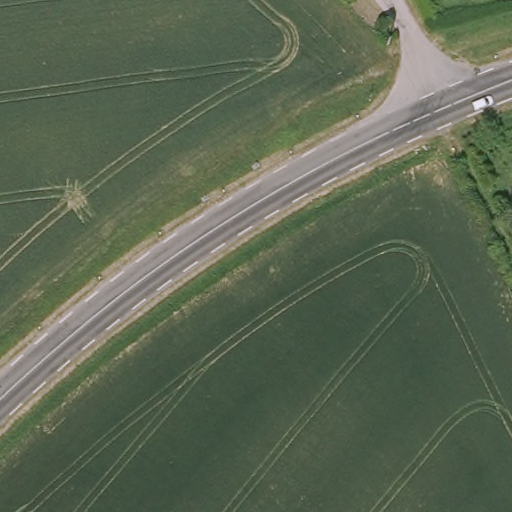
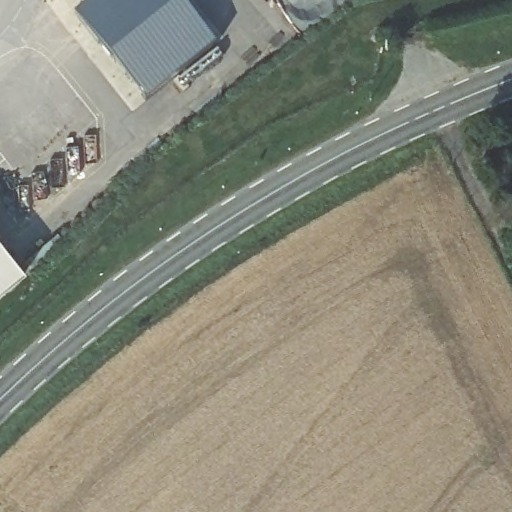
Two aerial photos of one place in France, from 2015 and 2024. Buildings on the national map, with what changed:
new [(75,14),(93,0),(181,0),(216,44),(146,101),(75,14)]
new [(0,299),(0,261),(18,283),(0,299)]

